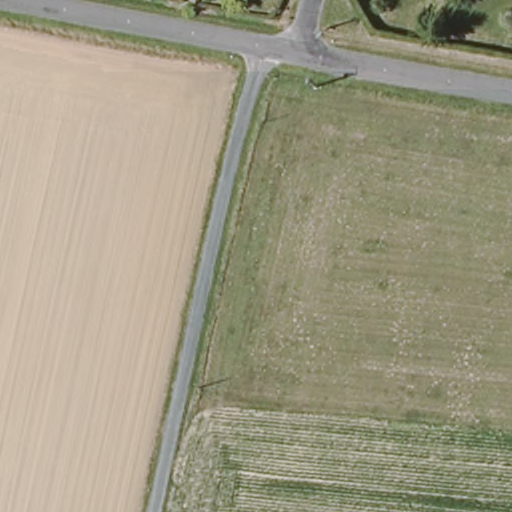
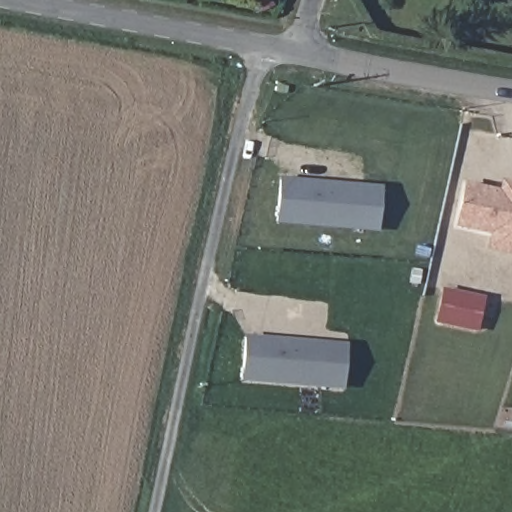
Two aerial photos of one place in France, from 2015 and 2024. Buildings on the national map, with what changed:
new [(377,233),(358,231),(278,225),(281,183),(361,190),(381,191),(377,233)]
new [(501,197),(503,187),(512,189),(512,199),(501,197)]
new [(466,189),(501,197),(512,199),(512,240),(493,236),(458,228),(466,189)]
new [(493,236),(512,240),(512,256),(490,251),(493,236)]
new [(444,293),(483,301),(477,334),(437,325),(444,293)]
new [(343,391),(320,389),(243,383),(247,341),(324,348),(346,350),(343,391)]

